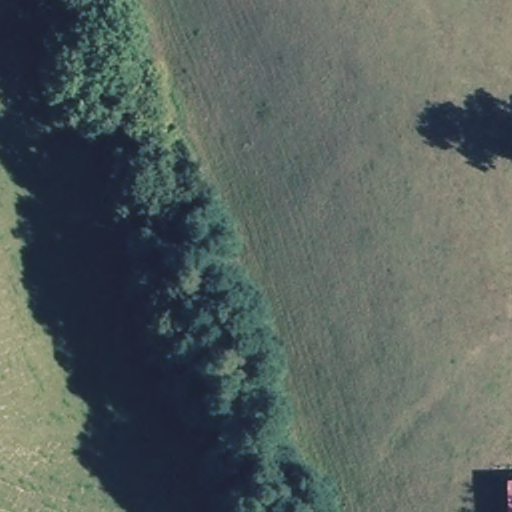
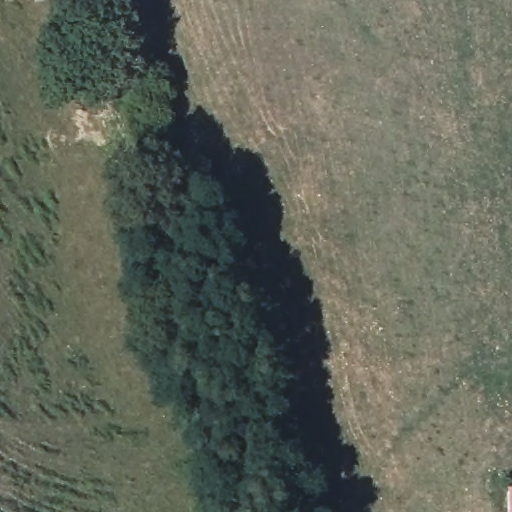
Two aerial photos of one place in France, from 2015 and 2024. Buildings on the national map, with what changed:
unchanged [(508,512),(508,503),(512,503),(512,512),(508,512)]

